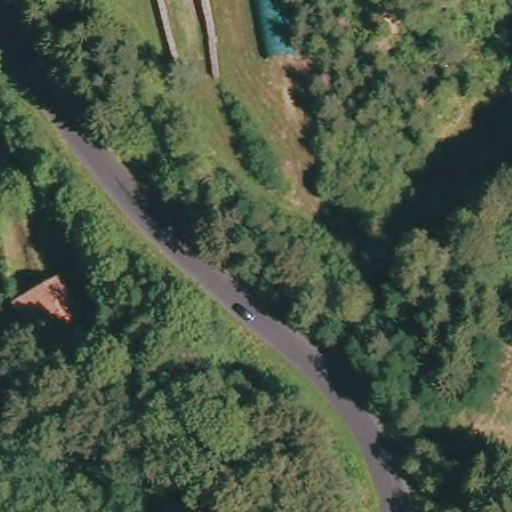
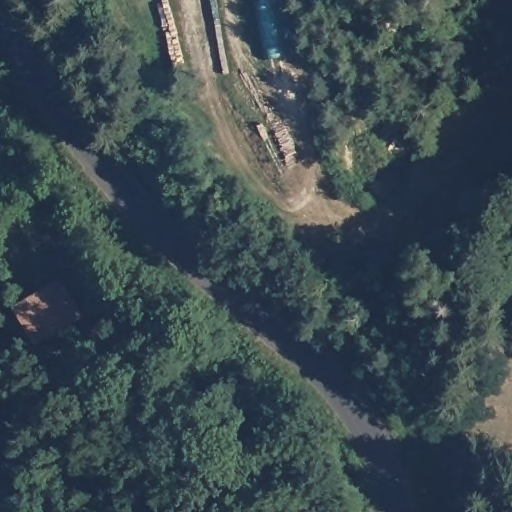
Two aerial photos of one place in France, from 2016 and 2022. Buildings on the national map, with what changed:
unchanged [(280,0),(290,54),(266,59),(256,0),(280,0)]
unchanged [(24,303),(71,278),(93,313),(47,339),(24,303)]
unchanged [(325,304),(342,310),(336,330),(318,321),(325,304)]

